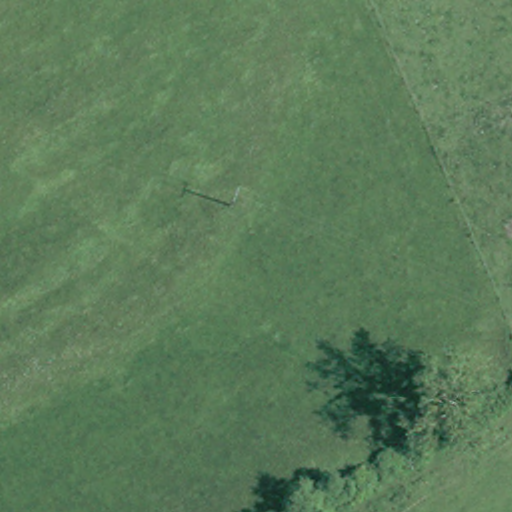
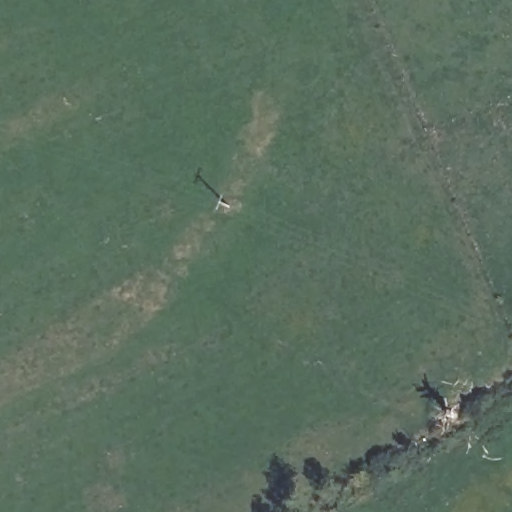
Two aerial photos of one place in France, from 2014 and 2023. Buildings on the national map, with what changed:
[]

